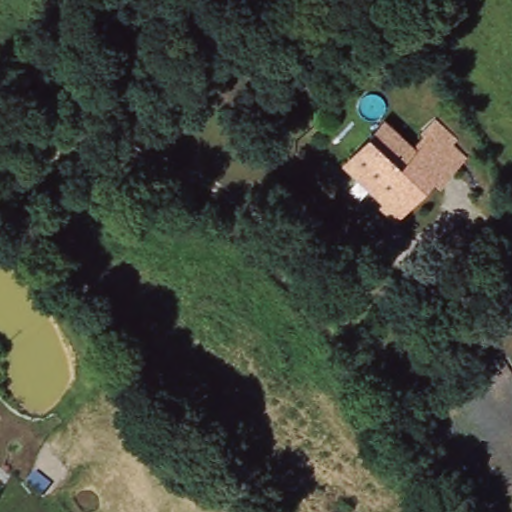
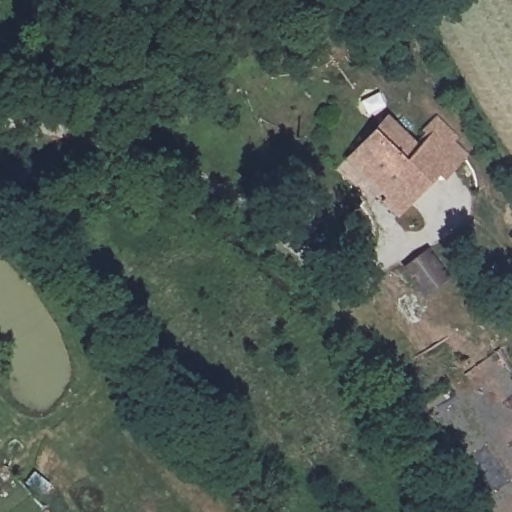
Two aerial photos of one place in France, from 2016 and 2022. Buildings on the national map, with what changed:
unchanged [(353,149),(374,127),(389,112),(395,118),(419,141),(431,130),(424,122),(439,109),(459,132),(456,136),(469,150),(443,176),(439,172),(397,213),(382,197),(384,193),(346,156),(353,149)]
unchanged [(512,233),(512,243),(507,237),(512,233)]
unchanged [(424,249),(446,278),(418,297),(398,268),(424,249)]
unchanged [(141,387),(150,402),(144,406),(135,392),(141,387)]

